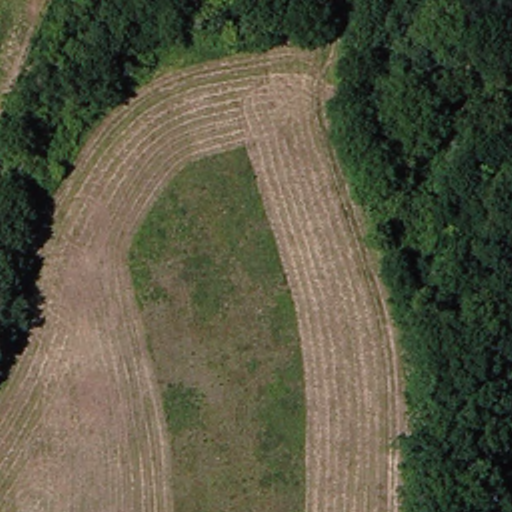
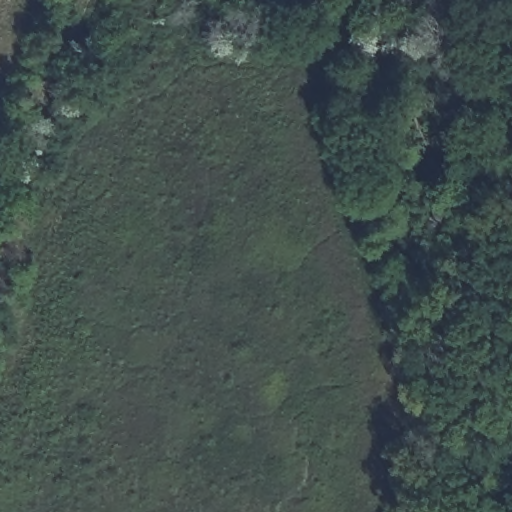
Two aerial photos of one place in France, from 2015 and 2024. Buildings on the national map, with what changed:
[]

